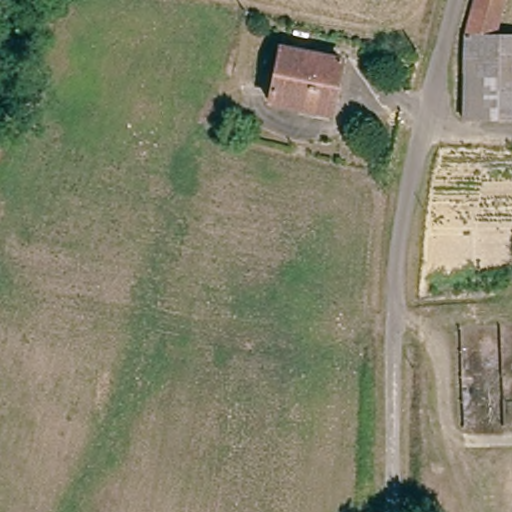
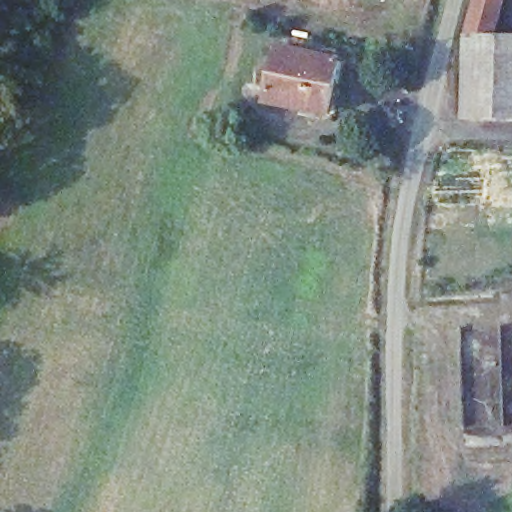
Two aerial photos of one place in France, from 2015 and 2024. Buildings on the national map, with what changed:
unchanged [(497,18),(487,21),(487,36),(512,37),(512,120),(461,118),(461,39),(472,0),(501,0),(497,18)]
unchanged [(342,57),(330,111),(272,97),(285,44),(342,57)]

